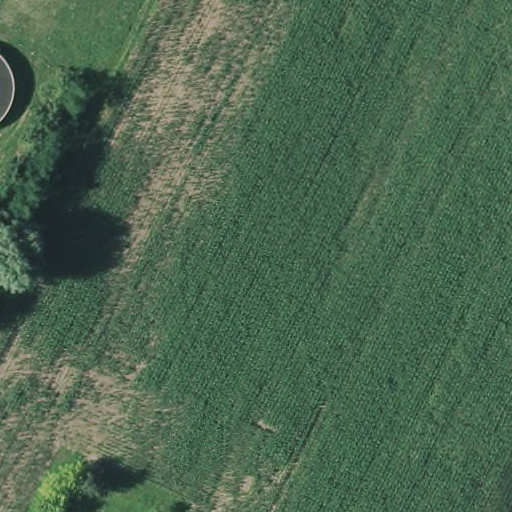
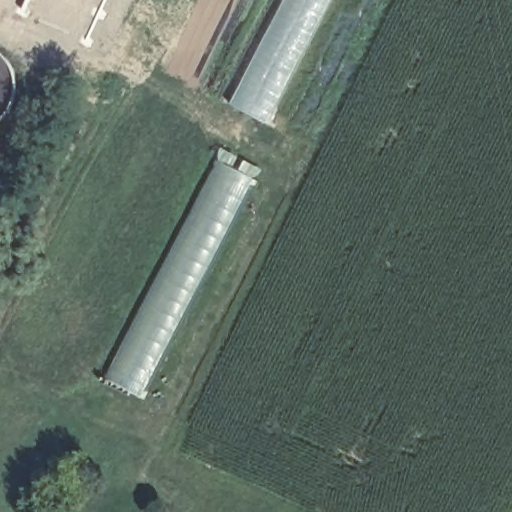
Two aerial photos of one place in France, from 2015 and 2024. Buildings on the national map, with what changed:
new [(271,131),(226,106),(281,0),(335,0),(271,131)]
new [(259,178),(145,398),(109,379),(221,159),(259,178)]

